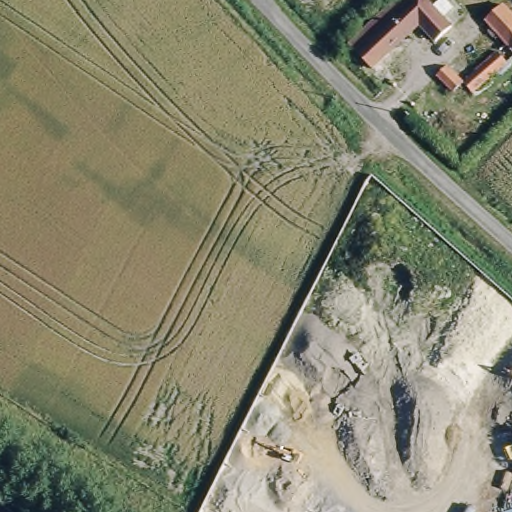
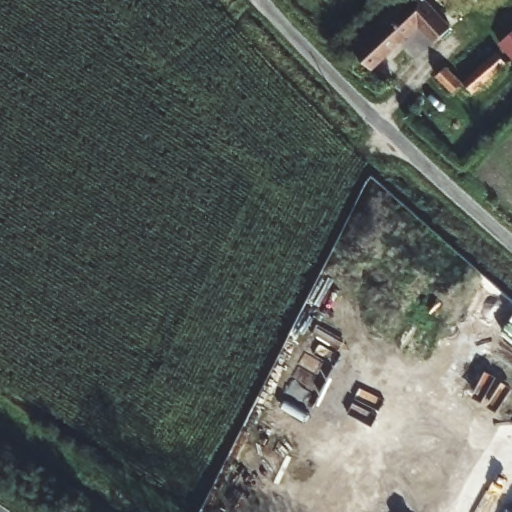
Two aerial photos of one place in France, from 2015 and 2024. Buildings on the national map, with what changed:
unchanged [(432,45),(416,28),(367,72),(345,47),(394,0),(421,0),(449,29),(432,45)]
unchanged [(512,58),(472,90),(469,86),(462,92),(457,87),(452,91),(437,74),(448,64),(462,80),(507,41),(502,33),(495,37),(483,20),(504,4),(512,15),(512,58)]

